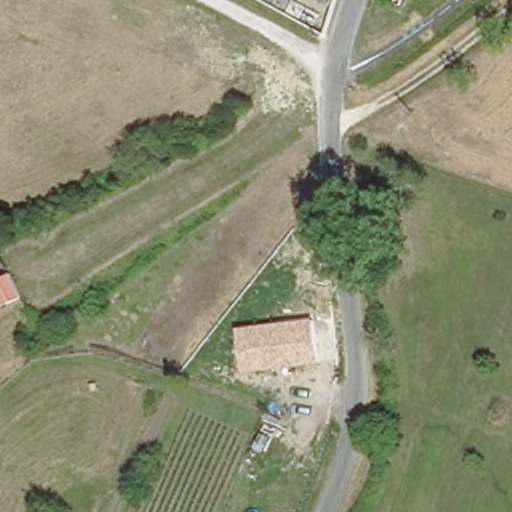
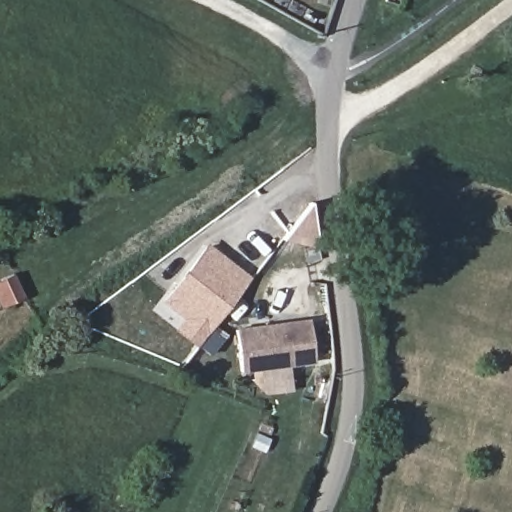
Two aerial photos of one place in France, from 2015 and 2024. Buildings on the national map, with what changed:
new [(252,277),(198,346),(177,331),(186,318),(163,300),(209,242),(252,277)]
unchanged [(0,296),(0,277),(7,292),(0,296)]
unchanged [(241,372),(236,328),(311,319),(316,362),(241,372)]

